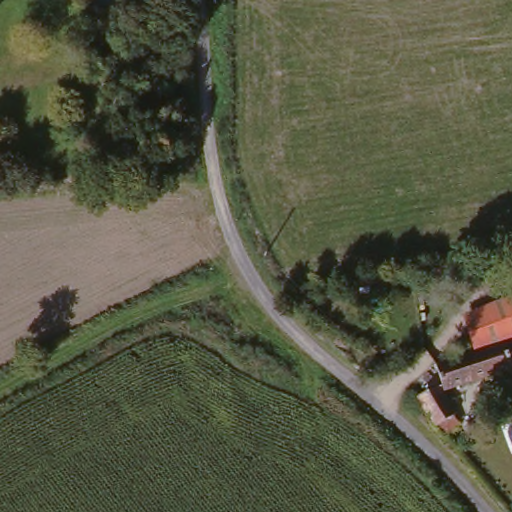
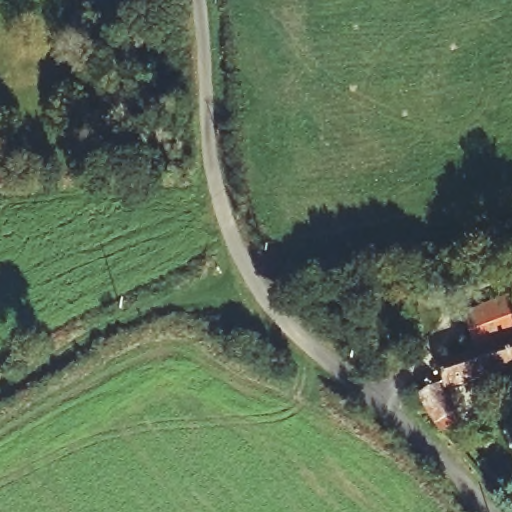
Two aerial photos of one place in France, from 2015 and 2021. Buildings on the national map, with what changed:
unchanged [(465,358),(461,339),(460,331),(470,320),(480,315),(512,300),(512,342),(465,358)]
unchanged [(438,395),(437,389),(431,370),(465,358),(512,342),(512,372),(438,395)]
unchanged [(438,441),(430,431),(412,402),(434,390),(451,419),(449,420),(454,428),(438,441)]

